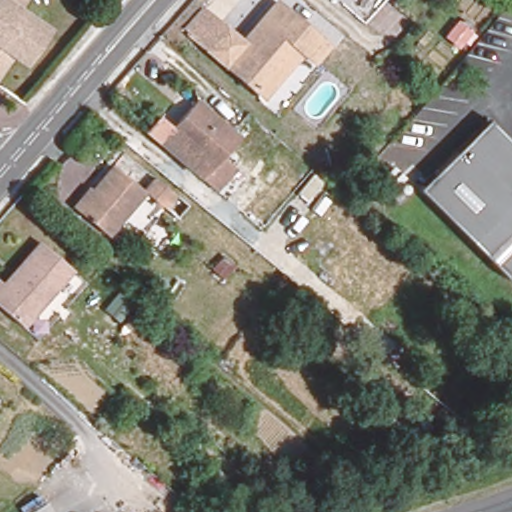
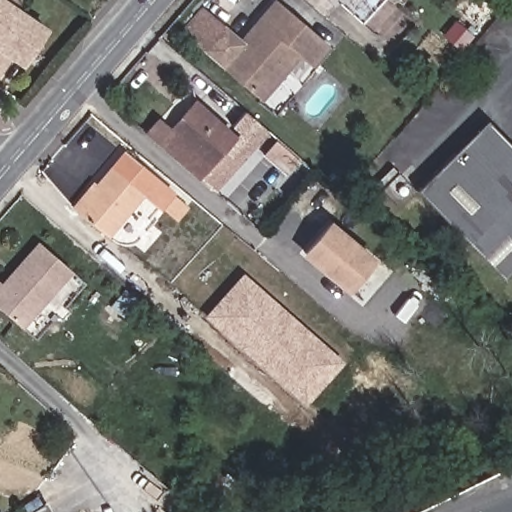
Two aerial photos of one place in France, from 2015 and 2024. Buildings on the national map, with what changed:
unchanged [(366,28),(342,8),(348,0),(387,0),(388,1),(366,28)]
unchanged [(256,101),(181,35),(201,12),(235,43),(255,20),(271,2),(322,48),(306,66),(296,56),(256,101)]
unchanged [(15,62),(0,52),(0,3),(37,28),(15,62)]
unchanged [(463,50),(442,35),(455,20),(476,36),(463,50)]
unchanged [(212,169),(227,182),(217,193),(161,144),(171,132),(197,103),(237,139),(212,169)]
unchanged [(509,279),(415,198),(472,131),(487,129),(512,150),(512,276),(509,279)]
unchanged [(164,222),(152,214),(127,244),(114,235),(136,206),(102,181),(112,166),(144,188),(155,177),(185,197),(164,222)]
unchanged [(136,206),(114,235),(104,248),(67,218),(81,198),(89,202),(102,181),(136,206)]
new [(370,270),(357,285),(354,282),(346,293),(299,254),(314,236),(328,219),(375,257),(367,267),(370,270)]
unchanged [(159,228),(169,236),(157,249),(147,241),(159,228)]
unchanged [(18,265),(37,243),(70,271),(20,327),(0,309),(0,286),(7,278),(18,265)]
new [(306,405),(205,317),(243,271),(343,361),(306,405)]
new [(45,500),(52,512),(29,512),(45,500)]
demolished [(50,503),(54,512),(33,512),(50,503)]

